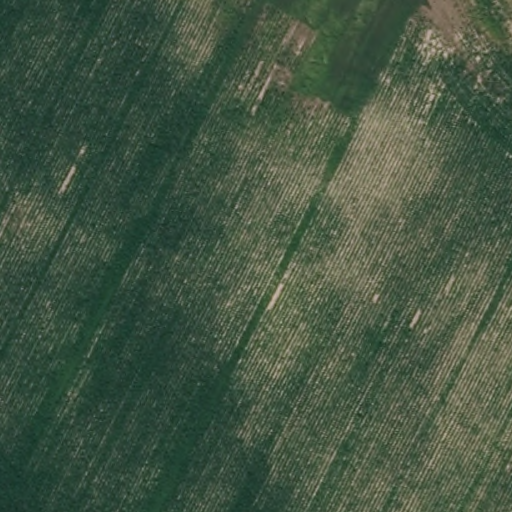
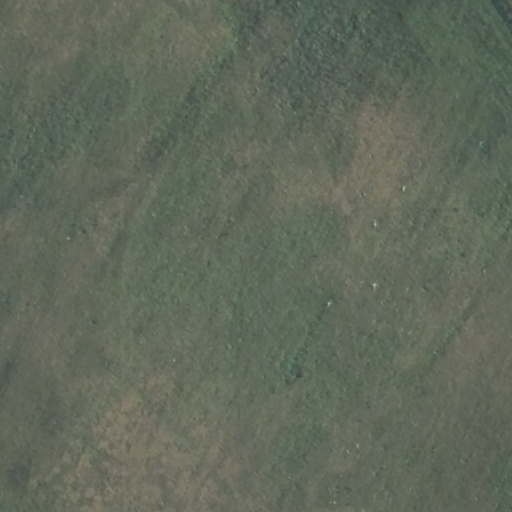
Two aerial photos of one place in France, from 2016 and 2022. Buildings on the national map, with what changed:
[]

